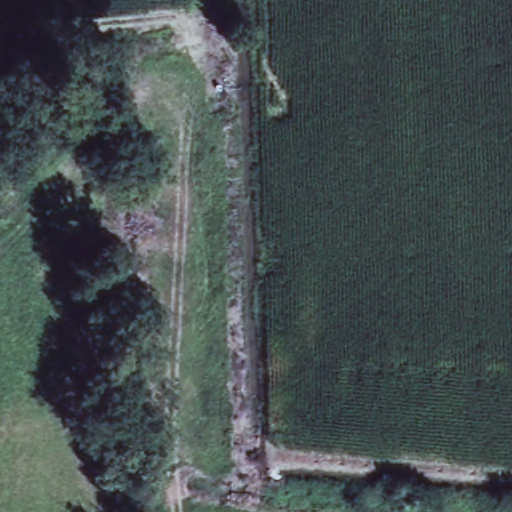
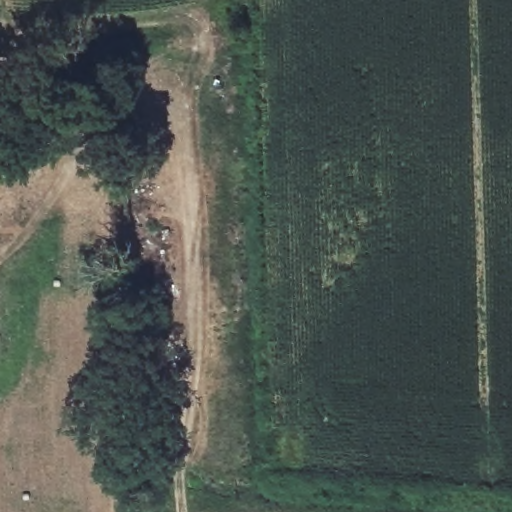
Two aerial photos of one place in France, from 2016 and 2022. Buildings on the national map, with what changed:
[]

